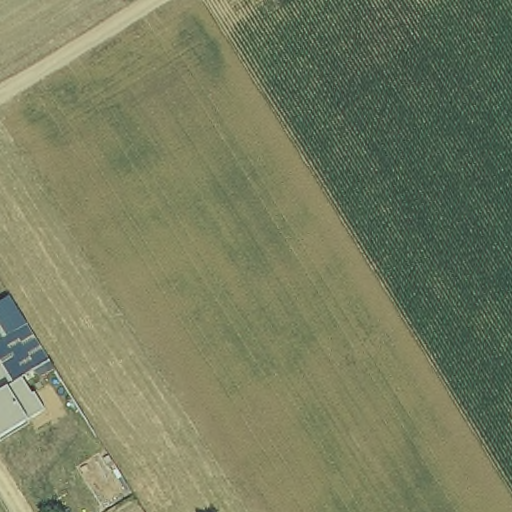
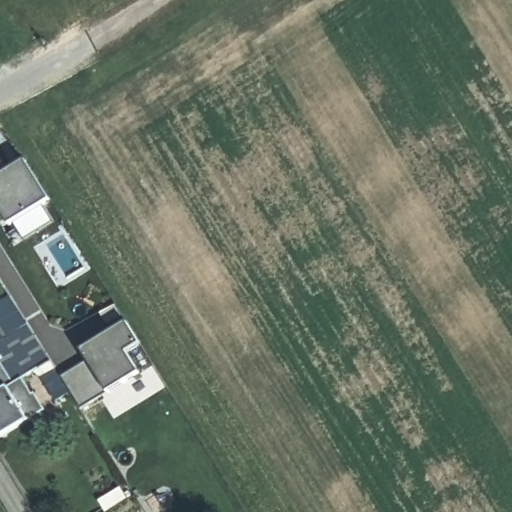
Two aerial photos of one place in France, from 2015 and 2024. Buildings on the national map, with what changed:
new [(2,171),(20,161),(44,201),(3,225),(0,221),(0,168),(2,171)]
unchanged [(54,367),(46,372),(41,365),(22,376),(32,393),(35,391),(45,408),(0,437),(0,304),(10,298),(26,323),(34,335),(50,359),(54,367)]
new [(86,358),(79,344),(124,318),(136,339),(122,348),(135,368),(104,388),(107,391),(80,407),(61,374),(86,358)]

